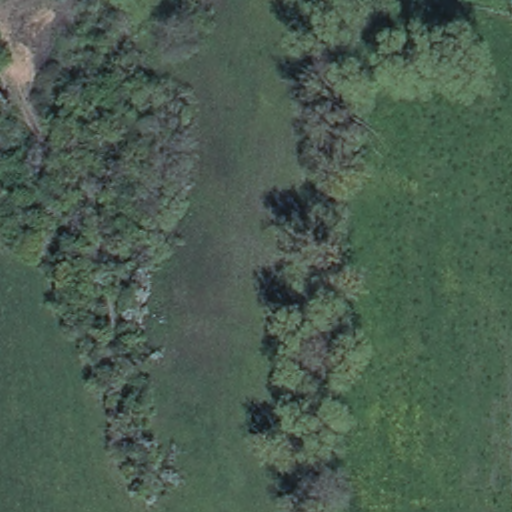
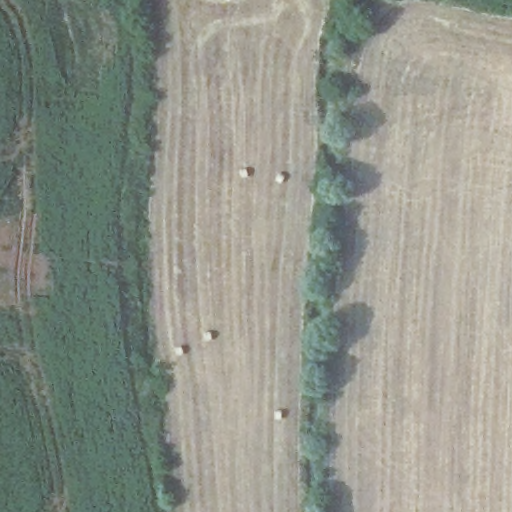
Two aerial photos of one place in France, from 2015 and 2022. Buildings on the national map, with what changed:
[]

